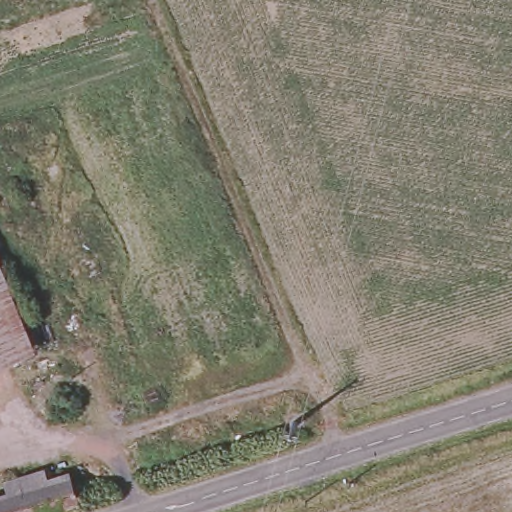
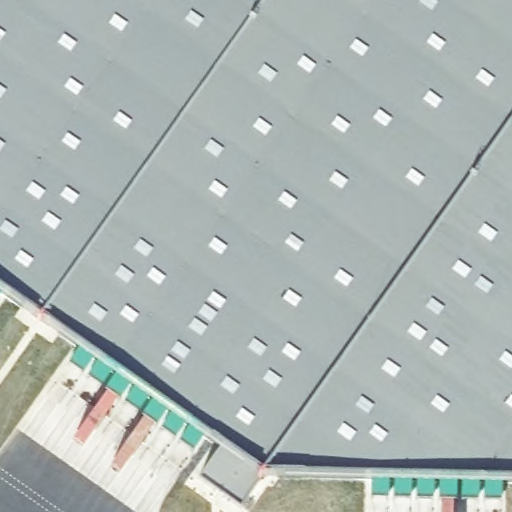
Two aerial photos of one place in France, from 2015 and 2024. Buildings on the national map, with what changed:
new [(304,479),(0,269),(0,0),(512,0),(512,492),(304,479)]
demolished [(0,282),(0,248),(13,276),(0,282)]
new [(274,458),(241,506),(200,478),(234,430),(274,458)]
demolished [(0,504),(0,495),(42,482),(47,497),(67,491),(71,504),(43,512),(0,512),(0,510),(2,510),(0,504)]

